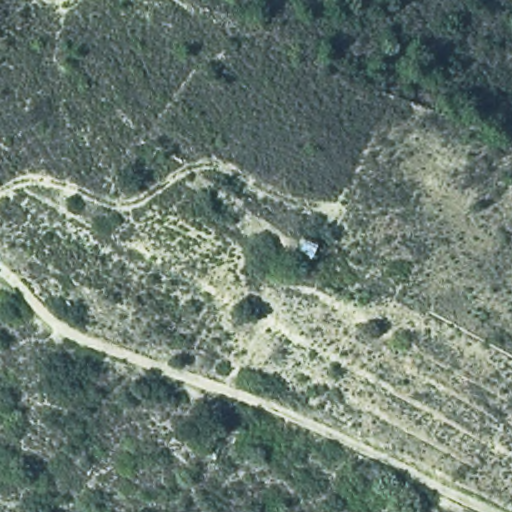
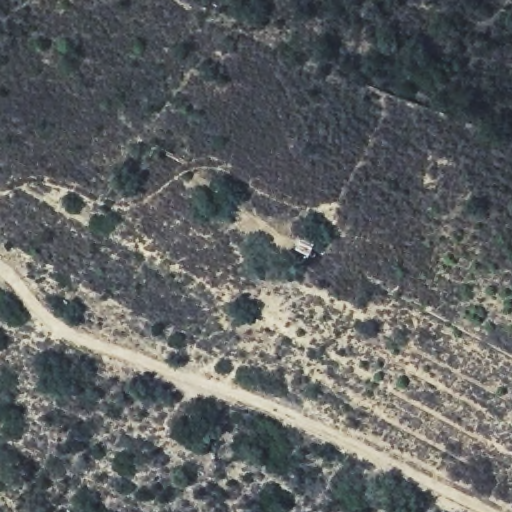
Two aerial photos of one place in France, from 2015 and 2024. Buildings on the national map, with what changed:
unchanged [(297,236),(315,241),(312,254),(312,260),(310,259),(294,250),(297,236)]

